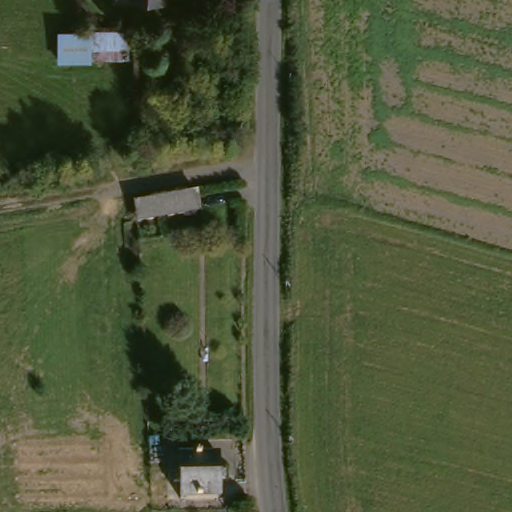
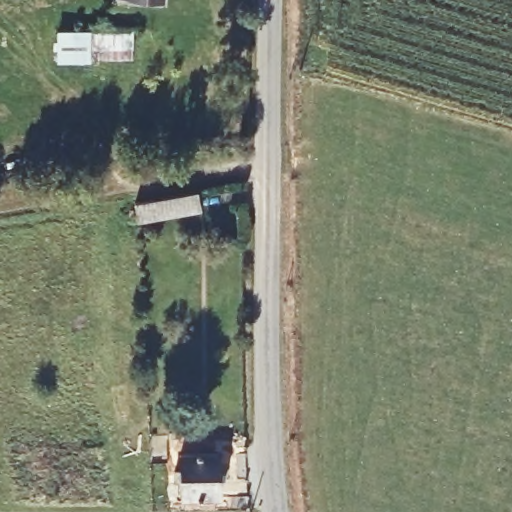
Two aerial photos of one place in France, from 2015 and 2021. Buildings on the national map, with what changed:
unchanged [(129,31),(129,61),(91,60),(91,64),(56,64),(56,31),(129,31)]
unchanged [(197,190),(200,207),(139,220),(135,201),(197,190)]
unchanged [(224,492),(186,493),(187,451),(223,450),(224,492)]

